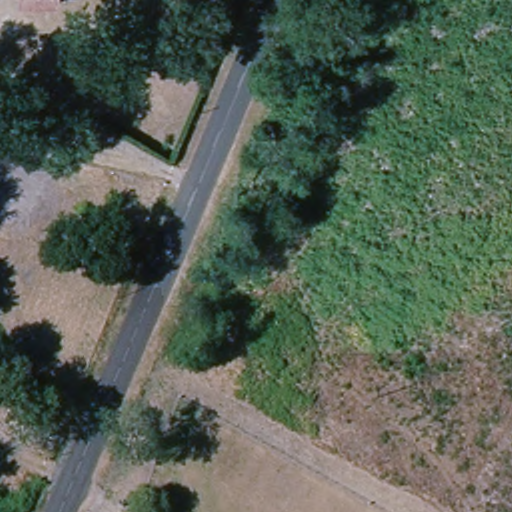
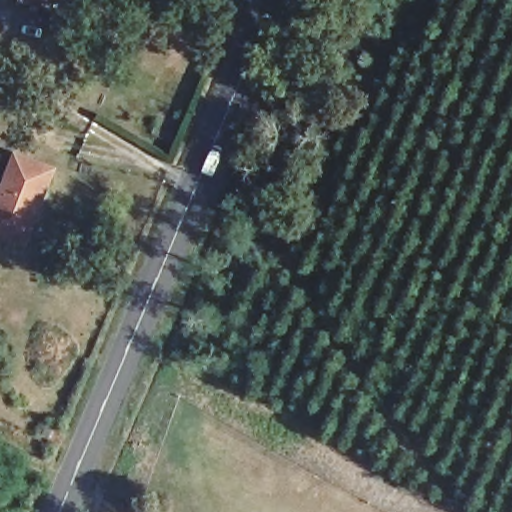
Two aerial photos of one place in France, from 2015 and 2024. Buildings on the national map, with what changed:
unchanged [(53,6),(17,2),(17,0),(54,0),(53,6)]
new [(27,247),(0,237),(0,190),(15,153),(58,170),(27,247)]
demolished [(42,179),(22,221),(0,211),(0,179),(8,162),(42,179)]

